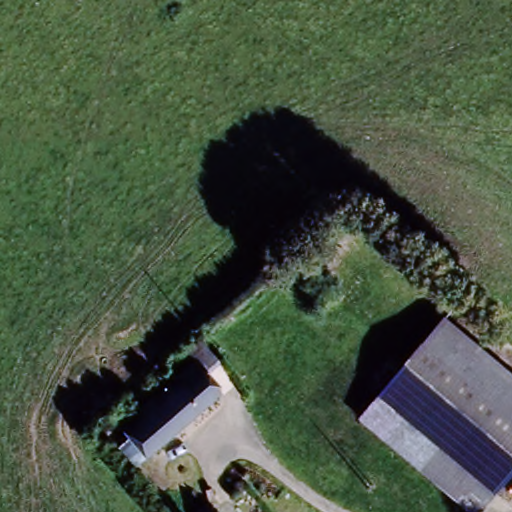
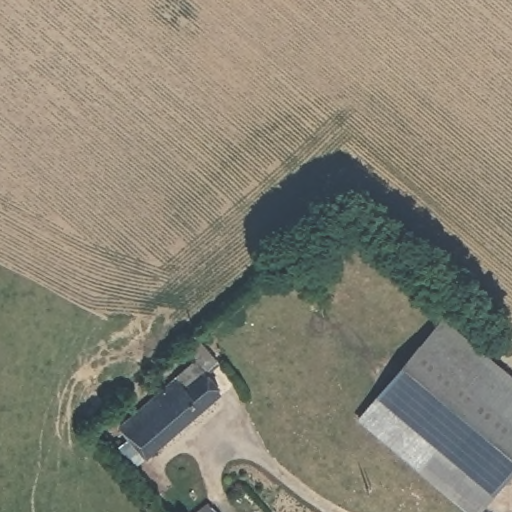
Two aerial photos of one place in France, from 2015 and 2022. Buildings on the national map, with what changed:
unchanged [(512,377),(512,469),(475,512),(473,512),(355,418),(441,316),(512,377)]
unchanged [(158,396),(182,376),(197,362),(205,371),(198,377),(218,399),(146,460),(130,441),(119,429),(158,396)]
unchanged [(218,512),(204,512),(213,505),(218,512)]

